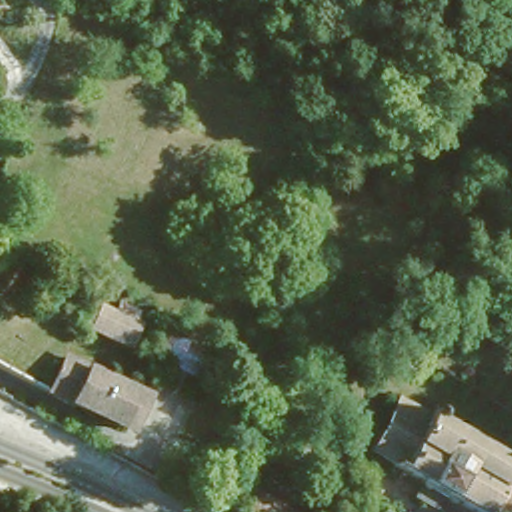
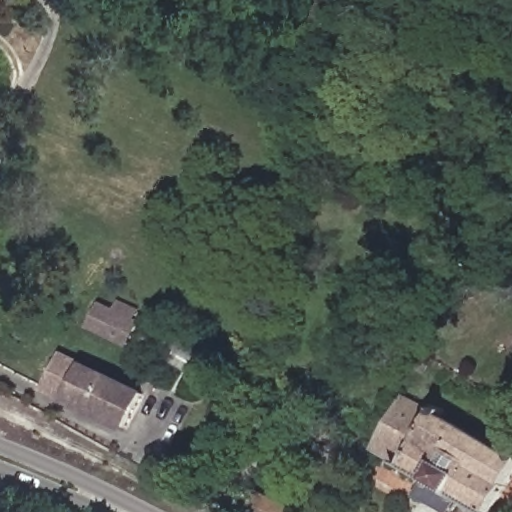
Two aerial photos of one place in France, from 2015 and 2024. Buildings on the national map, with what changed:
unchanged [(129,334),(107,322),(122,297),(142,309),(129,334)]
unchanged [(69,344),(154,386),(132,429),(47,384),(69,344)]
unchanged [(350,366),(342,378),(331,370),(338,359),(350,366)]
unchanged [(378,445),(396,406),(403,391),(512,445),(512,484),(500,504),(479,493),(436,473),(415,463),(378,445)]
unchanged [(464,512),(425,492),(436,473),(479,493),(468,512),(464,512)]
unchanged [(257,481),(313,512),(251,512),(245,509),(257,481)]

